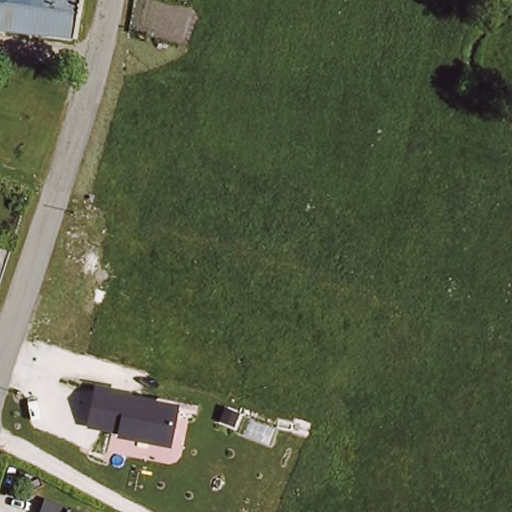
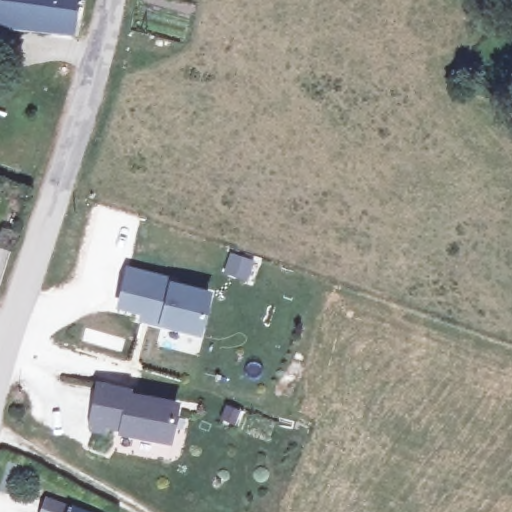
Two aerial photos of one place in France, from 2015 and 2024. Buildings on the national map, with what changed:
unchanged [(0,20),(0,0),(82,0),(78,29),(0,20)]
new [(137,322),(139,315),(115,310),(125,268),(177,278),(176,284),(211,291),(201,337),(158,327),(137,322)]
unchanged [(173,445),(119,436),(120,432),(89,427),(96,383),(133,391),(133,395),(181,403),(173,445)]
unchanged [(48,498),(83,512),(44,512),(48,498)]

